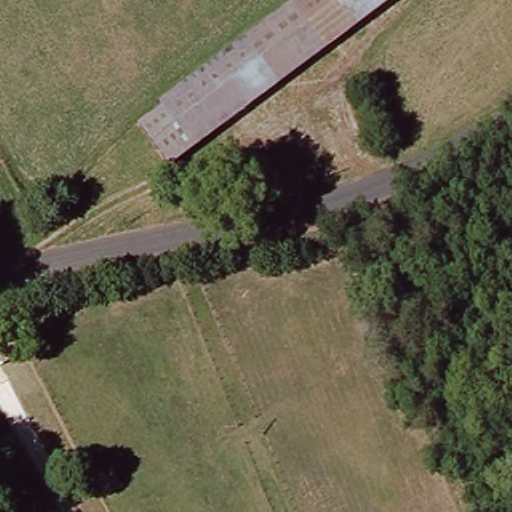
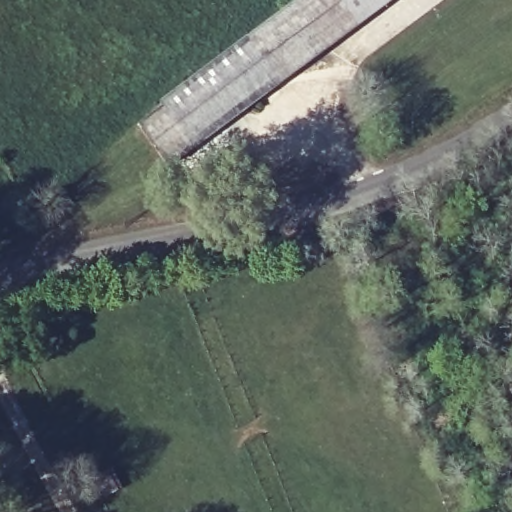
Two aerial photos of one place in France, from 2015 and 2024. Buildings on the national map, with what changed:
unchanged [(146,125),(165,110),(244,45),(301,0),(393,0),(181,169),(146,125)]

